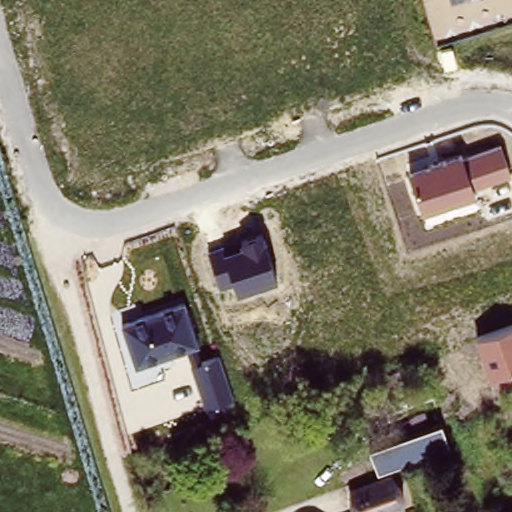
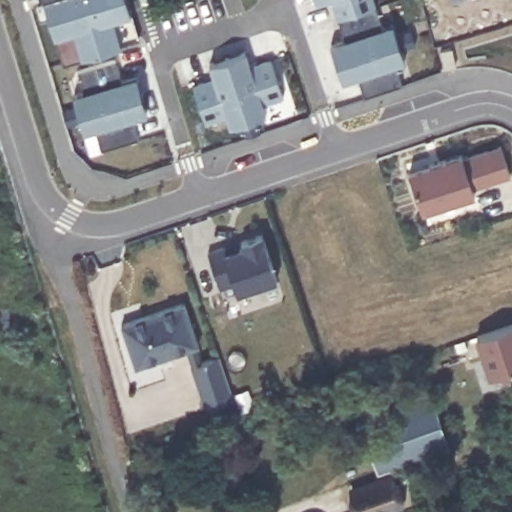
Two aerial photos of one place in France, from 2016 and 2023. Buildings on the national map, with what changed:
new [(142,38),(121,45),(83,56),(63,63),(57,36),(53,37),(47,18),(40,18),(37,0),(130,0),(142,38)]
new [(316,3),(315,0),(325,0),(316,3)]
new [(365,96),(361,76),(343,82),(330,44),(348,38),(334,0),(377,0),(384,24),(393,22),(397,37),(412,31),(417,45),(403,51),(407,61),(397,65),(402,83),(365,96)]
new [(265,107),(267,114),(259,117),(264,132),(247,138),(244,121),(231,127),(227,117),(207,124),(194,85),(213,80),(208,64),(247,51),(250,66),(272,59),(286,99),(265,107)]
new [(136,119),(140,139),(104,150),(99,129),(82,134),(80,125),(67,127),(63,114),(75,113),(73,95),(87,90),(80,71),(118,60),(126,80),(138,77),(150,114),(136,119)]
unchanged [(511,175),(471,188),(475,197),(422,214),(408,173),(462,156),(463,159),(500,146),(511,175)]
unchanged [(224,246),(226,252),(241,247),(240,242),(263,234),(277,282),(236,295),(232,284),(220,289),(208,251),(224,246)]
unchanged [(184,305),(202,362),(220,356),(234,400),(207,409),(188,350),(136,368),(122,325),(184,305)]
unchanged [(490,378),(475,337),(512,324),(512,369),(490,378)]
unchanged [(449,448),(377,470),(373,456),(369,444),(441,422),(444,430),(449,448)]
unchanged [(359,512),(351,487),(390,473),(398,499),(359,512)]

